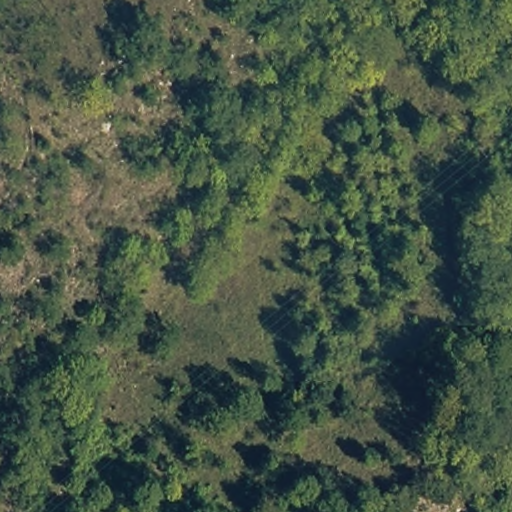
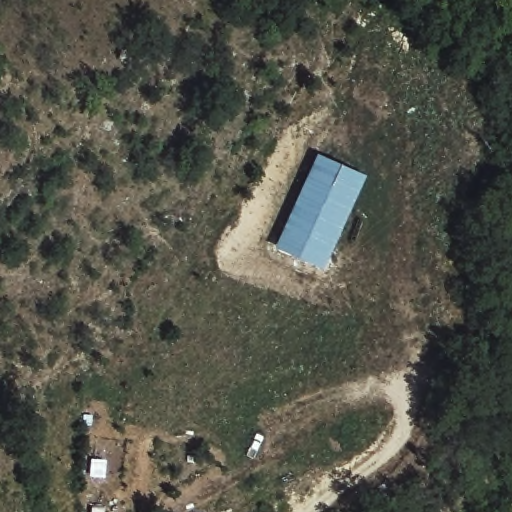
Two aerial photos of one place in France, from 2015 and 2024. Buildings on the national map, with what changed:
new [(317,153),(367,176),(324,269),(275,246),(317,153)]

